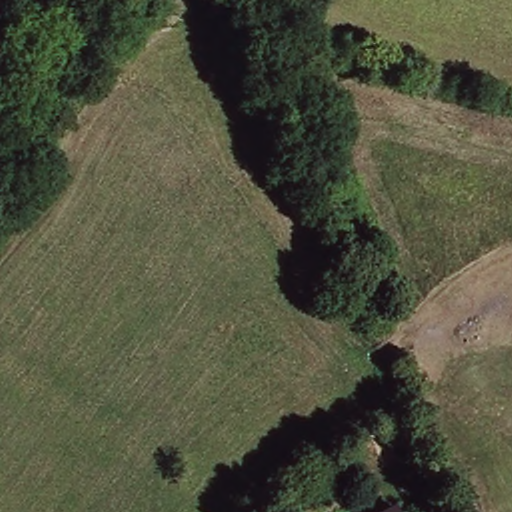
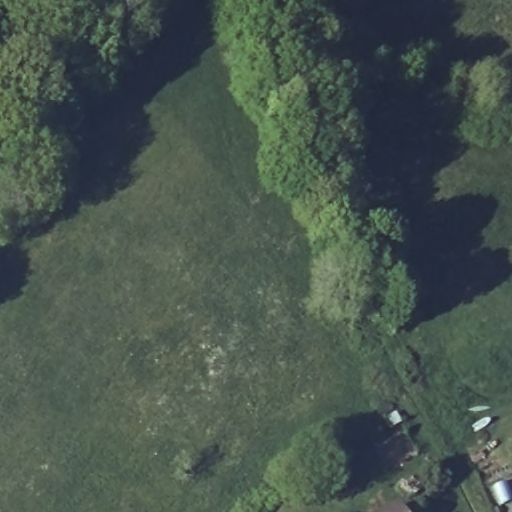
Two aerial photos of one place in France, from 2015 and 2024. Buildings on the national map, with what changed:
unchanged [(394,512),(387,512),(392,509),(394,512)]

